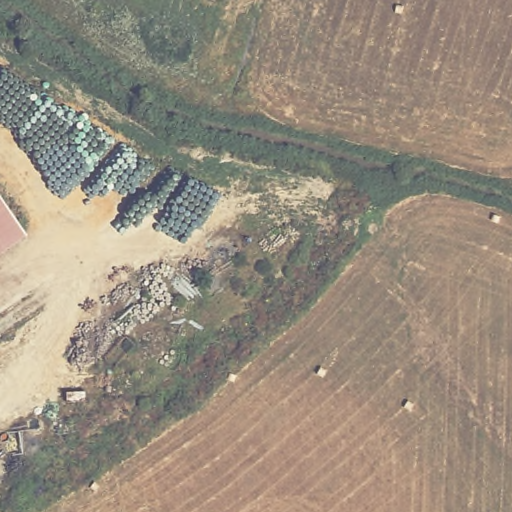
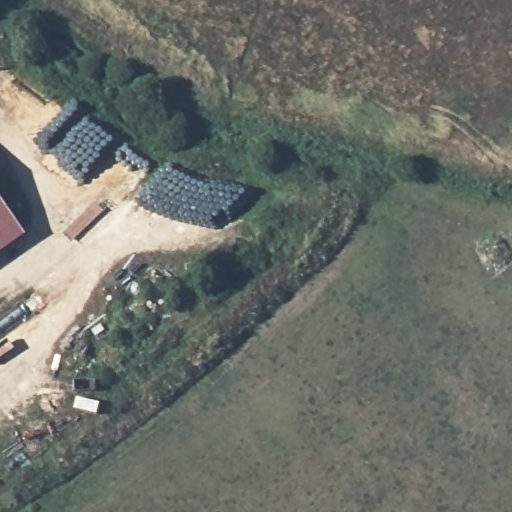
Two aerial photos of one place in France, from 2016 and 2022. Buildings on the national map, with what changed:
unchanged [(28,237),(0,257),(0,199),(28,237)]

